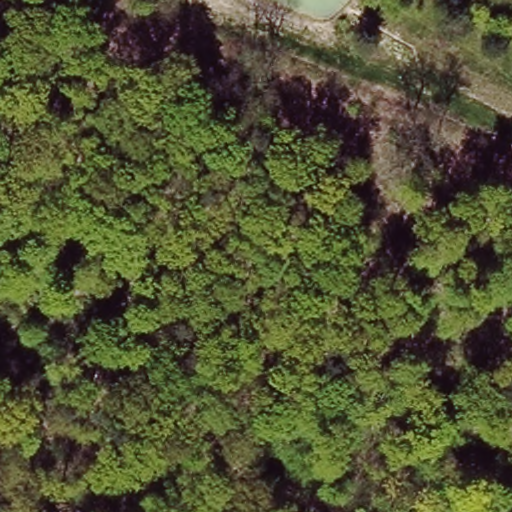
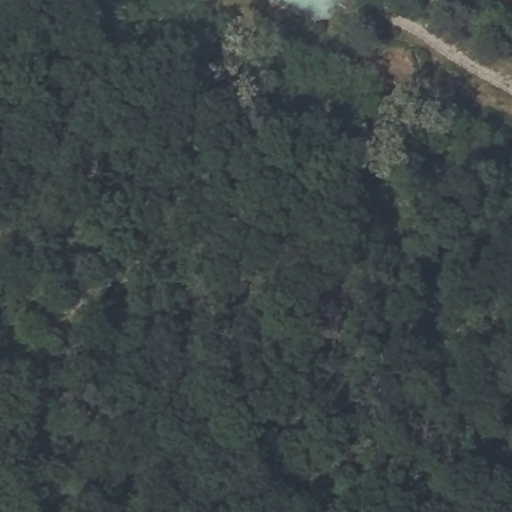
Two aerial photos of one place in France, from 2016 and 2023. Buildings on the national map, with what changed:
[]

